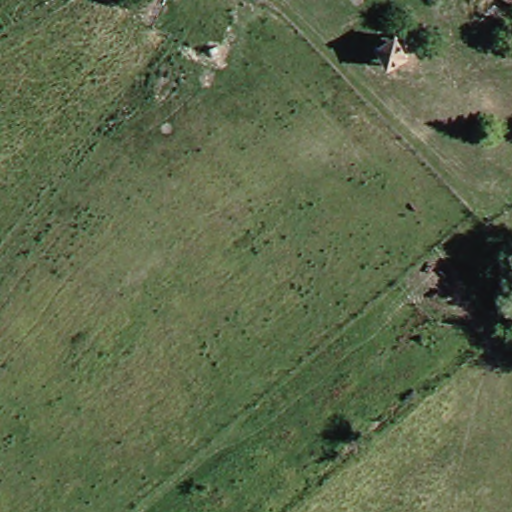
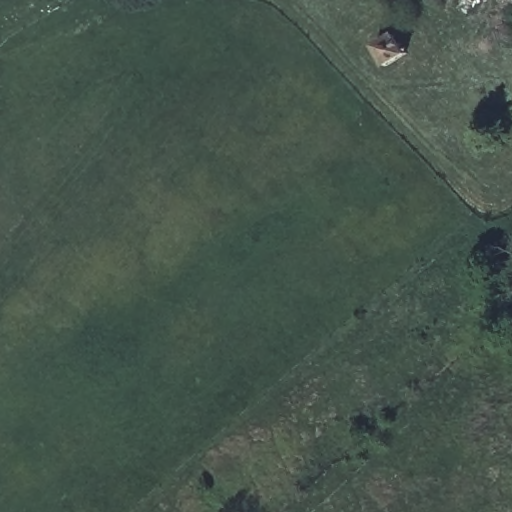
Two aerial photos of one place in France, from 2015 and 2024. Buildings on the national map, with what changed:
unchanged [(399,37),(406,60),(385,65),(377,44),(399,37)]

